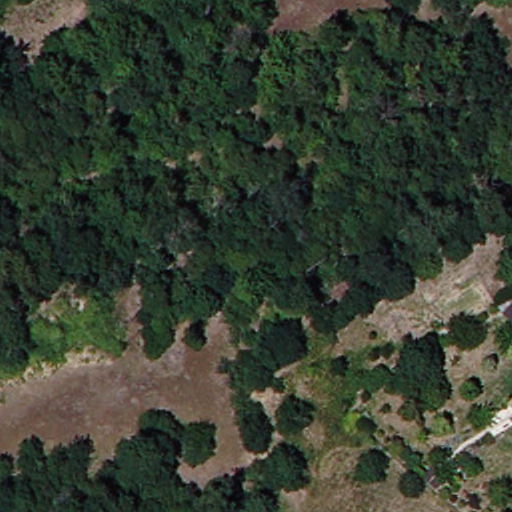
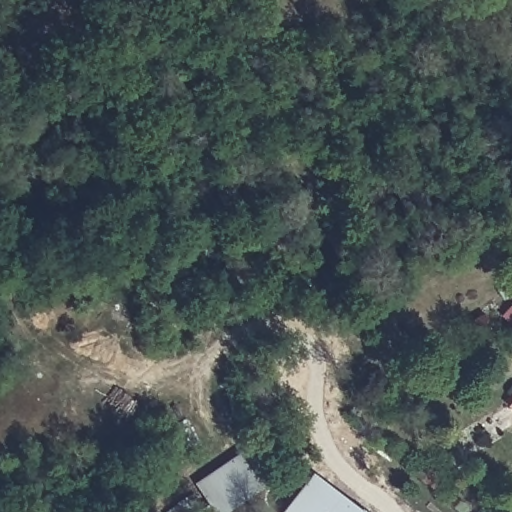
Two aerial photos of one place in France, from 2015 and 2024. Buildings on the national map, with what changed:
unchanged [(493,299),(503,286),(508,289),(512,284),(512,314),(511,315),(493,299)]
unchanged [(501,407),(510,395),(512,393),(512,418),(501,407)]
new [(220,512),(202,486),(246,453),(266,482),(226,512),(220,512)]
new [(364,512),(283,512),(313,473),(364,512)]

